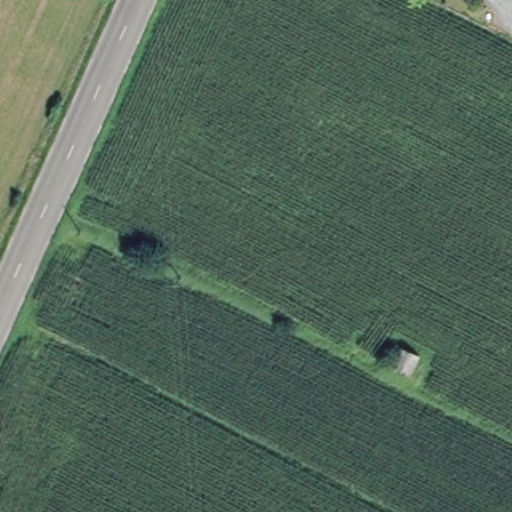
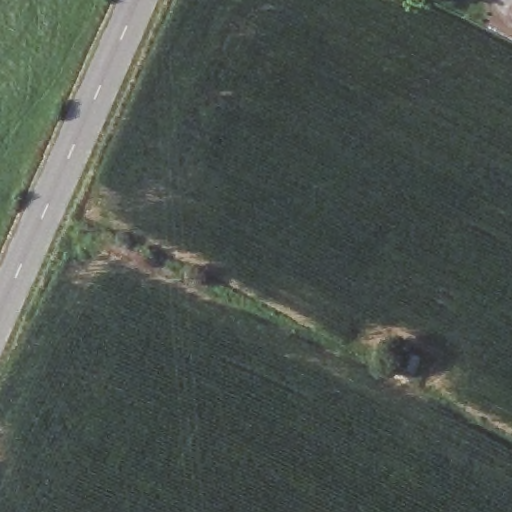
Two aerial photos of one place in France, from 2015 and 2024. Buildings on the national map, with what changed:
unchanged [(401,347),(420,356),(411,377),(392,367),(401,347)]

